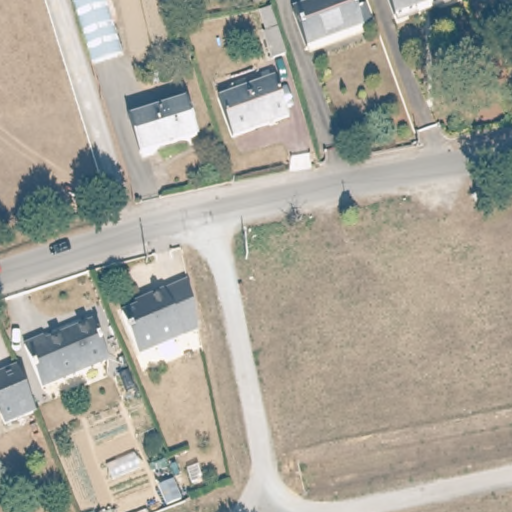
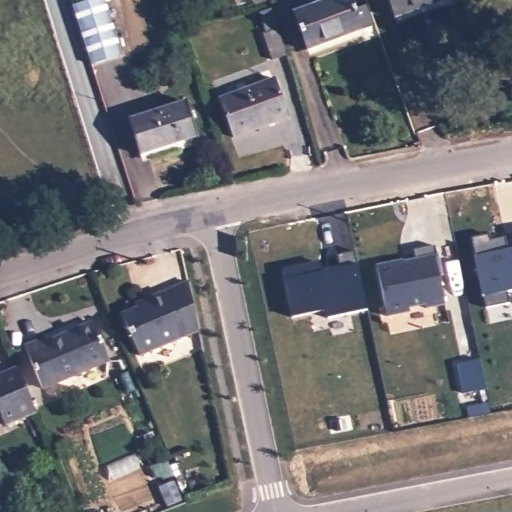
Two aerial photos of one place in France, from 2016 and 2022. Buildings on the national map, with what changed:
unchanged [(82,0),(105,0),(122,53),(91,63),(72,3),(82,0)]
unchanged [(308,51),(294,15),(333,0),(351,0),(363,30),(308,51)]
unchanged [(389,0),(426,0),(394,13),(389,0)]
unchanged [(267,29),(262,13),(273,9),(278,26),(267,29)]
unchanged [(275,61),(266,36),(278,32),(286,57),(275,61)]
unchanged [(285,111),(231,128),(220,91),(272,76),(285,111)]
unchanged [(139,151),(128,118),(186,100),(196,134),(139,151)]
unchanged [(505,293),(508,302),(487,307),(485,297),(475,257),(472,238),(488,236),(491,246),(512,240),(512,291),(505,293)]
new [(447,305),(387,317),(377,266),(416,259),(413,250),(436,246),(447,305)]
new [(367,310),(327,318),(325,310),(292,317),(282,268),(318,261),(322,271),(340,267),(337,254),(355,251),(367,310)]
unchanged [(191,331),(130,355),(114,314),(138,304),(136,299),(181,282),(191,331)]
unchanged [(42,380),(26,339),(46,332),(48,335),(94,317),(109,355),(42,380)]
unchanged [(0,429),(0,381),(14,375),(33,420),(1,432),(0,429)]
unchanged [(163,505),(155,484),(169,479),(177,500),(163,505)]

